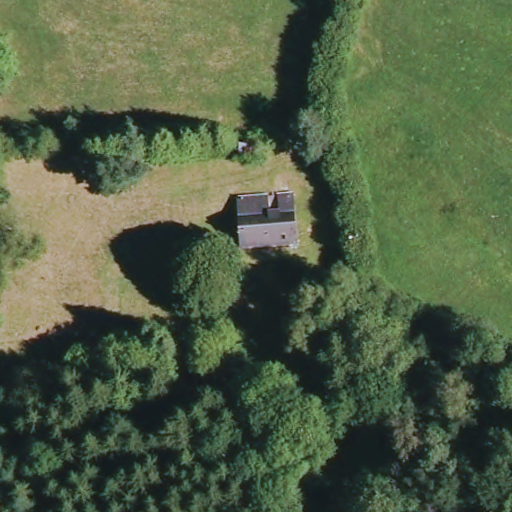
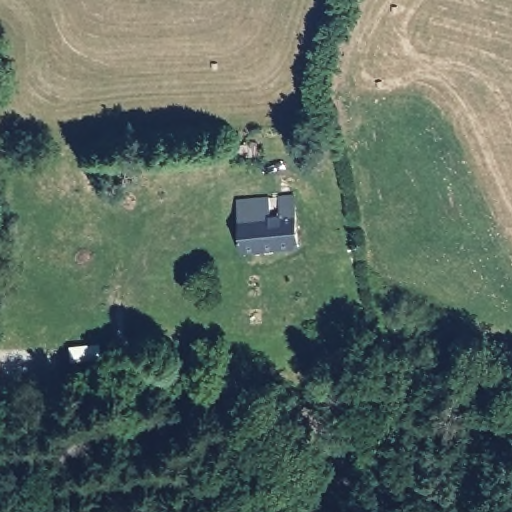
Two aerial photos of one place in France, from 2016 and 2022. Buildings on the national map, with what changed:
unchanged [(302,247),(249,249),(245,202),(300,199),(302,247)]

